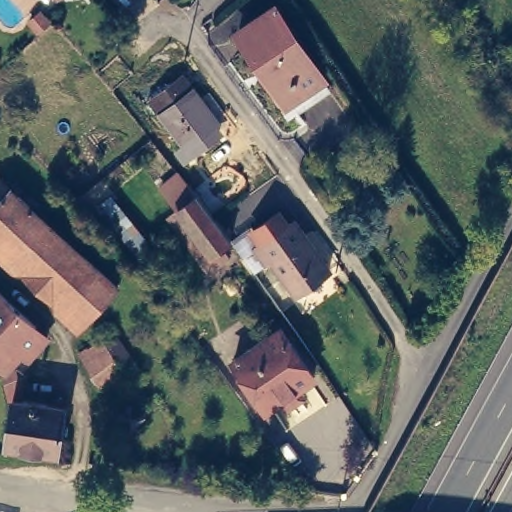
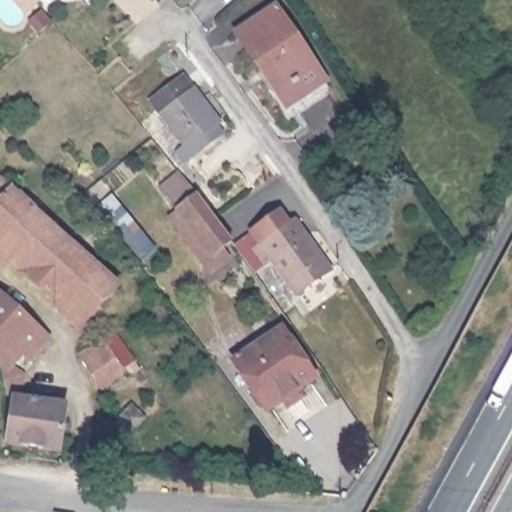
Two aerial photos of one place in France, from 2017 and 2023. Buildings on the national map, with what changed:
unchanged [(278,8),(330,79),(307,97),(253,25),(278,8)]
unchanged [(307,97),(295,105),(245,32),(253,25),(307,97)]
unchanged [(216,131),(219,137),(202,149),(198,144),(187,152),(151,102),(184,78),(194,91),(196,91),(209,108),(216,104),(225,117),(219,122),(221,126),(216,131)]
unchanged [(224,229),(231,238),(211,252),(177,207),(160,183),(178,169),(197,192),(204,201),(224,229)]
unchanged [(83,315),(0,240),(0,180),(113,284),(92,306),(83,315)]
unchanged [(232,185),(241,199),(231,205),(221,193),(232,185)]
unchanged [(129,211),(156,247),(142,259),(114,226),(116,222),(105,207),(117,196),(129,211)]
unchanged [(297,218),(328,262),(297,284),(274,254),(267,257),(258,245),(297,218)]
unchanged [(24,378),(24,384),(5,382),(5,380),(2,369),(1,368),(1,366),(0,365),(0,295),(36,328),(35,330),(45,340),(30,357),(18,371),(24,378)]
unchanged [(280,327),(312,375),(298,385),(303,393),(300,396),(306,405),(297,410),(291,401),(287,404),(281,396),(266,405),(261,399),(257,401),(248,387),(251,385),(233,357),(280,327)]
unchanged [(86,352),(117,330),(138,362),(107,382),(86,352)]
unchanged [(12,402),(12,401),(9,401),(5,382),(24,384),(21,403),(65,409),(64,422),(68,422),(66,440),(61,440),(57,453),(4,447),(12,402)]

